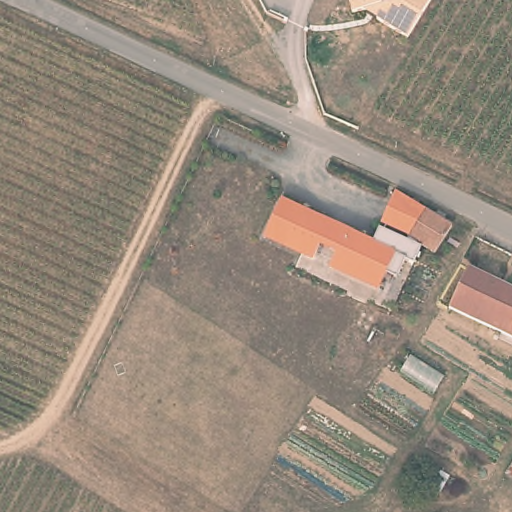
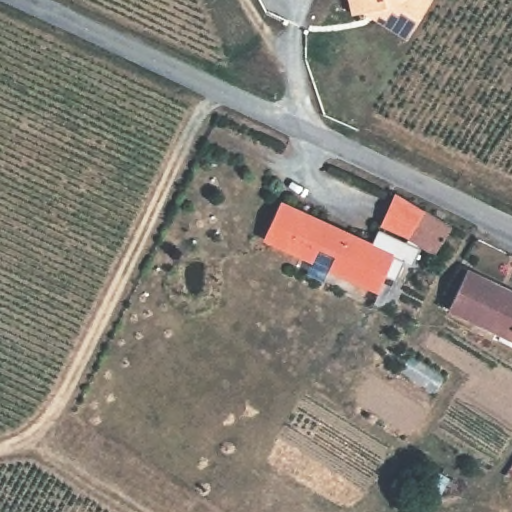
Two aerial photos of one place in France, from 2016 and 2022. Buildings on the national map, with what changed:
unchanged [(410,40),(379,21),(382,16),(371,10),(360,13),(353,15),(350,0),(434,0),(410,40)]
unchanged [(418,215),(407,235),(421,243),(411,263),(404,261),(397,279),(386,274),(378,290),(262,236),(282,197),(373,240),(396,189),(423,205),(418,215)]
unchanged [(421,243),(407,235),(423,205),(453,224),(435,251),(421,243)]
unchanged [(512,336),(446,305),(465,267),(512,288),(512,336)]
unchanged [(512,466),(512,474),(509,472),(512,466)]

